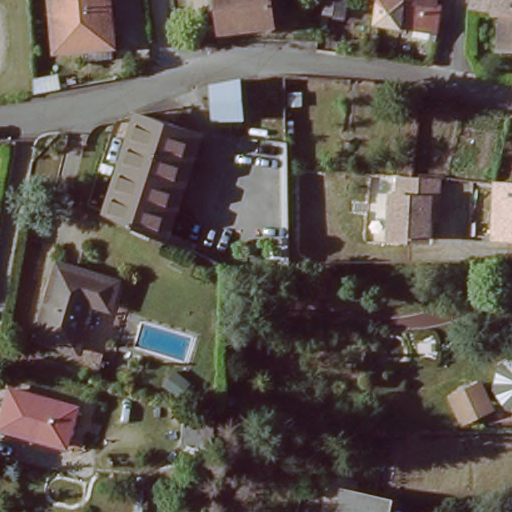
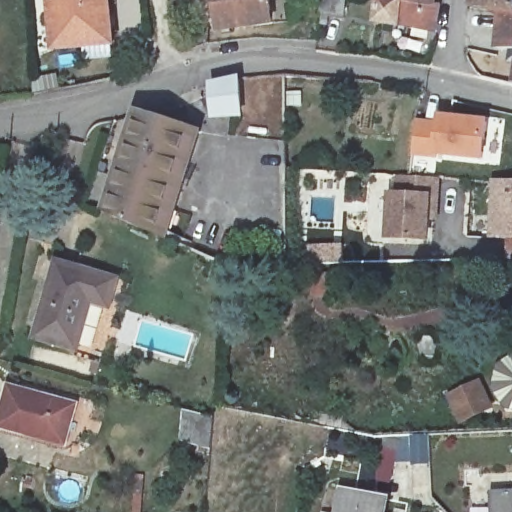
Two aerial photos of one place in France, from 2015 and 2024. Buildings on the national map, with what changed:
unchanged [(45,0),(101,0),(103,41),(48,45),(48,35),(45,0)]
unchanged [(211,0),(268,0),(271,27),(215,34),(211,0)]
unchanged [(359,0),(358,8),(336,5),(336,0),(359,0)]
unchanged [(431,1),(426,30),(368,21),(371,0),(422,0),(427,0),(431,1)]
unchanged [(498,9),(490,7),(491,0),(512,0),(512,11),(498,9)]
unchanged [(492,50),(498,9),(512,11),(512,55),(492,50)]
unchanged [(508,80),(510,69),(512,58),(512,82),(508,80)]
unchanged [(218,84),(235,80),(237,116),(210,115),(208,86),(218,84)]
unchanged [(198,132),(159,230),(99,205),(140,109),(198,132)]
new [(415,156),(418,120),(439,124),(439,113),(491,120),(486,162),(438,156),(415,156)]
unchanged [(443,220),(432,219),(431,242),(386,242),(388,191),(400,193),(401,175),(444,177),(443,220)]
unchanged [(501,262),(504,242),(485,240),(492,180),(512,182),(512,262),(501,262)]
unchanged [(107,275),(100,301),(81,297),(69,346),(30,337),(48,261),(107,275)]
unchanged [(498,405),(487,378),(495,355),(512,349),(512,411),(498,405)]
unchanged [(473,387),(482,411),(459,420),(450,395),(473,387)]
unchanged [(81,445),(14,430),(23,391),(90,406),(81,445)]
demolished [(379,443),(367,441),(368,431),(381,433),(379,443)]
new [(431,463),(413,464),(412,436),(430,438),(431,463)]
unchanged [(382,497),(379,512),(331,512),(335,490),(367,495),(382,497)]
new [(489,492),(512,491),(512,512),(490,512),(489,492)]

